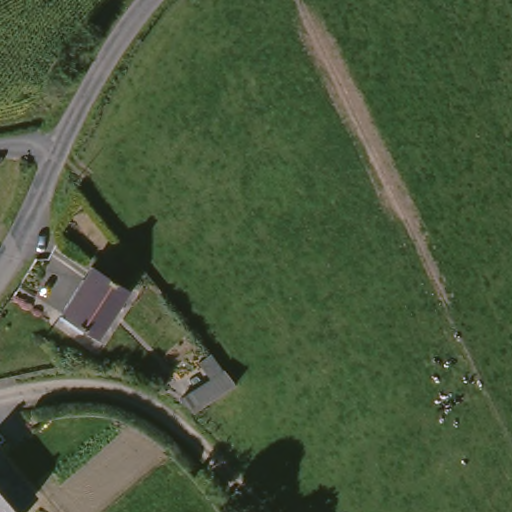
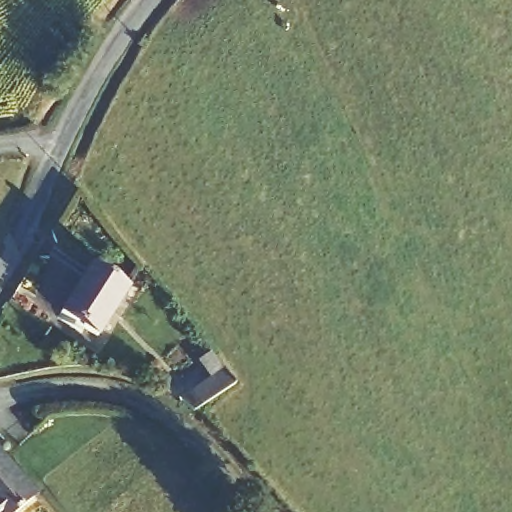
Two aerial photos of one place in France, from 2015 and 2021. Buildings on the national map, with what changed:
unchanged [(135,290),(103,338),(69,316),(101,268),(135,290)]
unchanged [(224,364),(211,373),(200,357),(212,348),(224,364)]
unchanged [(240,380),(196,410),(182,398),(230,365),(240,380)]
unchanged [(0,512),(0,450),(44,499),(29,512),(0,512)]

